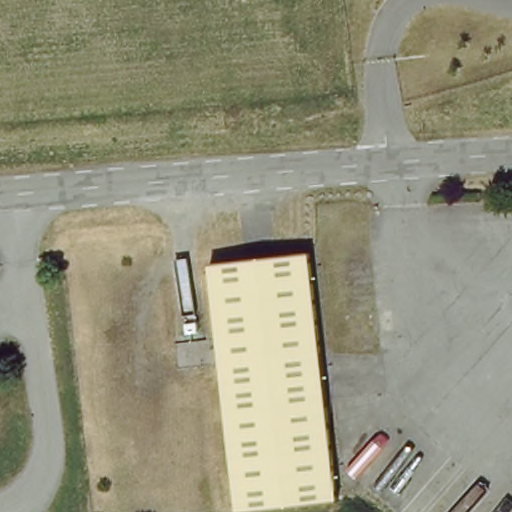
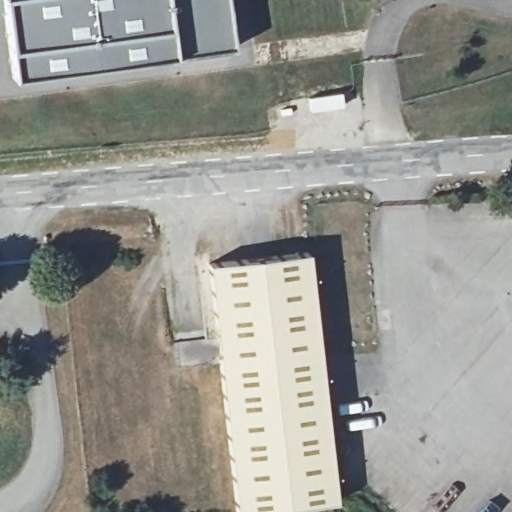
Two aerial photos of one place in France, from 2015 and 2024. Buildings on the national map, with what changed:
new [(174,56),(13,77),(5,13),(0,13),(0,0),(226,0),(233,49),(174,56)]
unchanged [(309,256),(336,503),(269,512),(238,512),(210,265),(309,256)]

